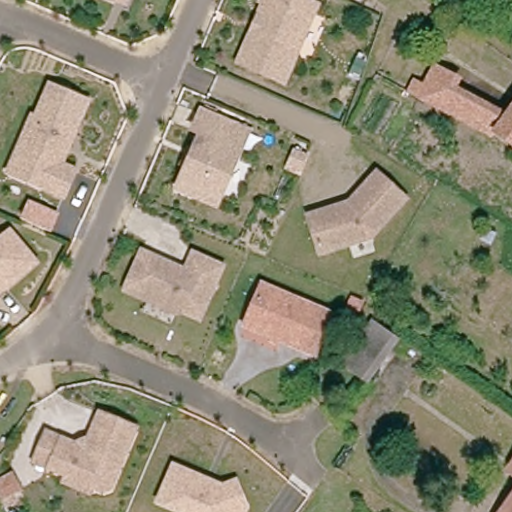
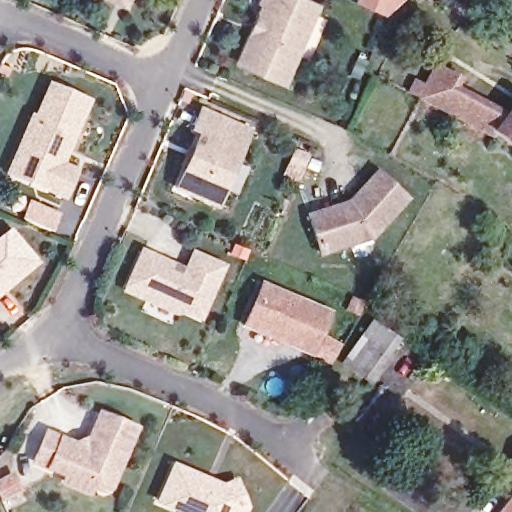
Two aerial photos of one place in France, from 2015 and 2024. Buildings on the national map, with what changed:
unchanged [(129,0),(127,2),(122,0),(129,0)]
unchanged [(283,80),(238,60),(251,30),(259,12),(264,0),(313,0),(318,2),(283,80)]
new [(404,0),(386,17),(354,2),(355,0),(404,0)]
unchanged [(422,92),(434,71),(450,80),(443,92),(503,122),(512,110),(512,147),(494,135),(491,139),(418,102),(405,96),(411,87),(422,92)]
unchanged [(23,149),(40,114),(43,116),(59,84),(96,102),(66,163),(80,170),(68,196),(47,187),(13,170),(23,149)]
unchanged [(201,194),(199,196),(179,187),(204,132),(196,129),(205,110),(244,127),(251,131),(243,149),(219,202),(201,194)]
unchanged [(298,171),(285,165),(290,152),(303,157),(298,171)]
unchanged [(351,201),(380,172),(408,200),(372,236),(320,250),(310,212),(351,201)]
unchanged [(59,212),(51,234),(18,220),(28,200),(59,212)]
unchanged [(10,230),(37,261),(6,287),(0,287),(0,286),(0,239),(10,230)]
unchanged [(144,256),(176,270),(177,276),(185,280),(195,257),(224,271),(202,322),(128,289),(144,256)]
unchanged [(264,283),(331,312),(313,354),(246,325),(264,283)]
unchanged [(370,321),(392,338),(363,377),(340,361),(370,321)]
unchanged [(67,475),(70,468),(51,461),(36,454),(48,426),(63,432),(87,442),(102,407),(137,421),(111,481),(106,483),(93,478),(90,485),(67,475)]
unchanged [(512,476),(504,471),(512,461),(512,476)]
unchanged [(160,500),(175,464),(204,476),(206,482),(203,488),(209,491),(237,479),(248,505),(245,512),(191,512),(160,500)]
unchanged [(0,499),(0,481),(8,495),(0,499)]
unchanged [(512,490),(512,512),(496,512),(512,490)]

